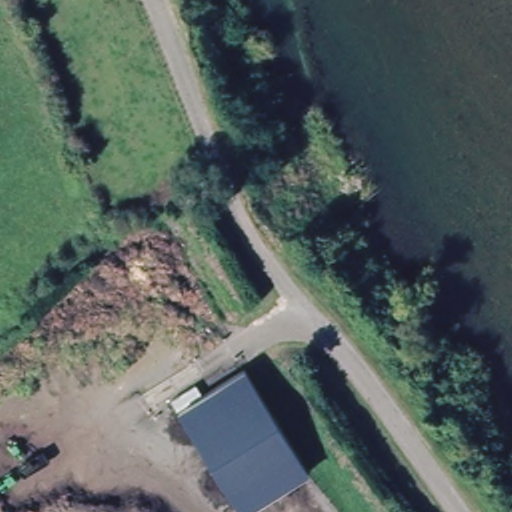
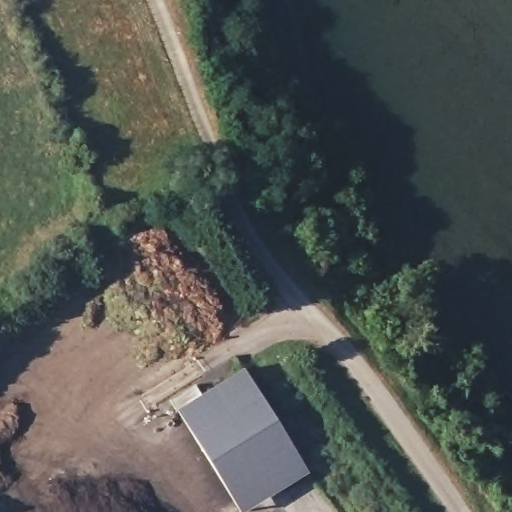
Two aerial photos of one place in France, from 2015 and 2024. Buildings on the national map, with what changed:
unchanged [(242,369),(286,429),(313,465),(313,466),(251,511),(235,489),(180,414),(242,369)]

